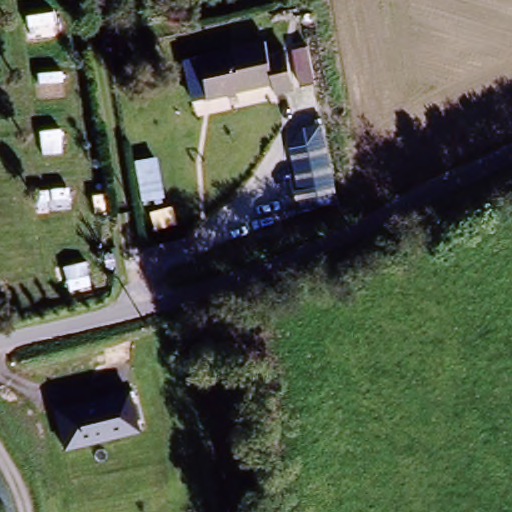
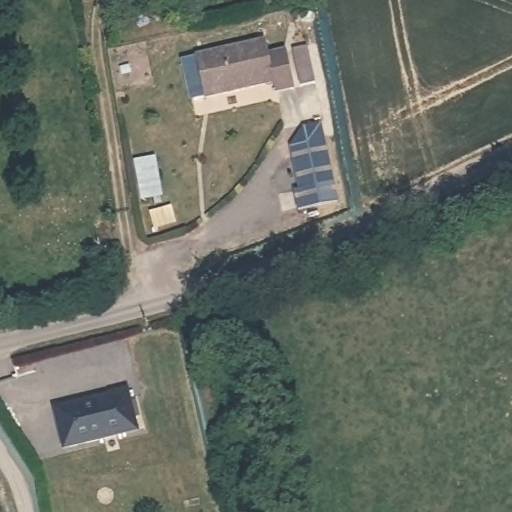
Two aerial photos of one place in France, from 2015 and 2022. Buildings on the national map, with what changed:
unchanged [(185,54),(267,40),(270,55),(289,52),(294,90),(276,92),(275,84),(207,97),(192,100),(188,74),(185,54)]
unchanged [(319,85),(318,85),(301,89),(296,50),(310,46),(313,46),(319,85)]
unchanged [(322,123),(341,209),(297,217),(291,190),(297,189),(286,130),(322,123)]
unchanged [(129,393),(139,436),(59,456),(49,412),(129,393)]

